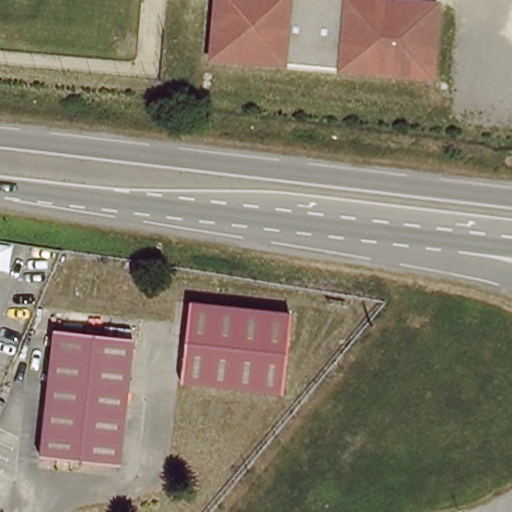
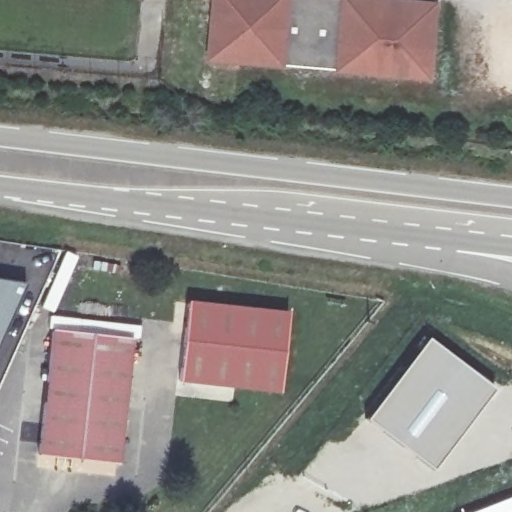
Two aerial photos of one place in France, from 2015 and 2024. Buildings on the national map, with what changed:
unchanged [(208,62),(213,0),(442,0),(435,80),(208,62)]
unchanged [(288,314),(280,394),(180,385),(189,305),(288,314)]
unchanged [(131,340),(117,466),(38,458),(51,331),(131,340)]
new [(427,336),(493,387),(431,469),(364,417),(427,336)]

